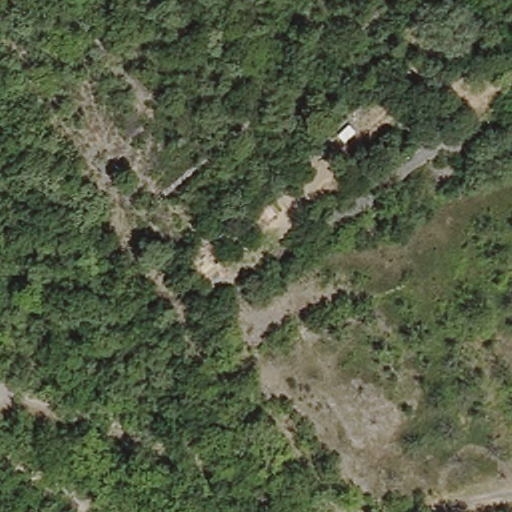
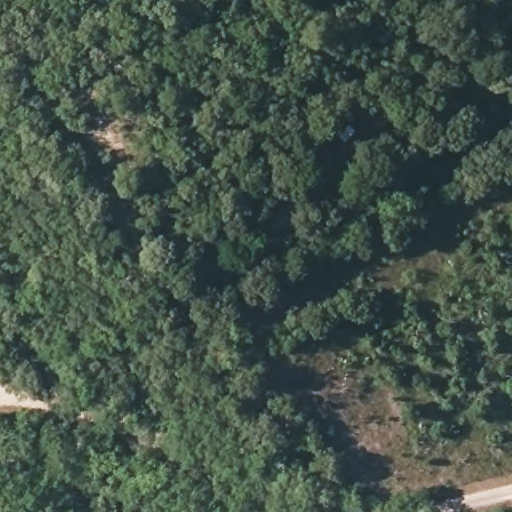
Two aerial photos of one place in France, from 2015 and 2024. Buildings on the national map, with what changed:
unchanged [(498,150),(506,166),(488,175),(480,159),(498,150)]

